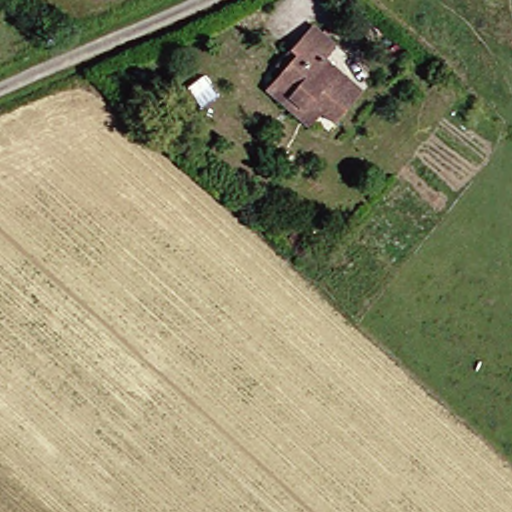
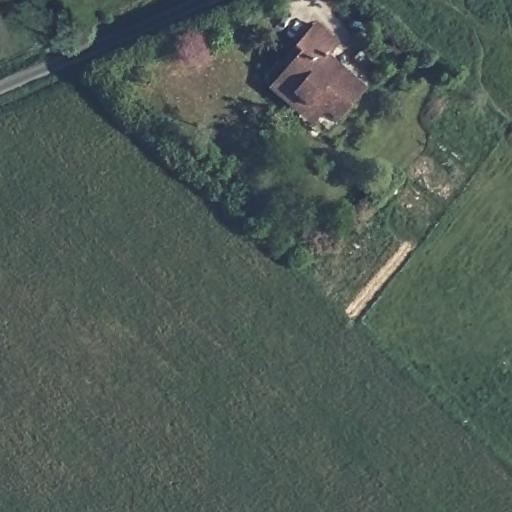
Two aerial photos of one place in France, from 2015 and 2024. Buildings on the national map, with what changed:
unchanged [(300,116),(286,101),(297,90),(280,75),(276,70),(293,51),(312,30),(333,48),(324,59),(361,94),(339,116),(332,123),(311,102),(300,116)]

